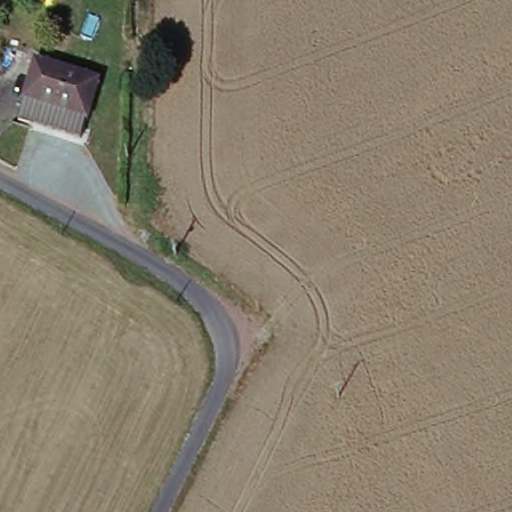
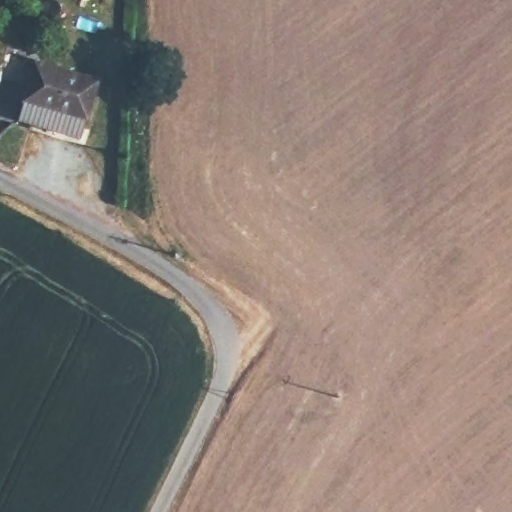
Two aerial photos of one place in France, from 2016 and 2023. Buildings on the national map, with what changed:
unchanged [(102,81),(86,141),(24,122),(41,63),(102,81)]

